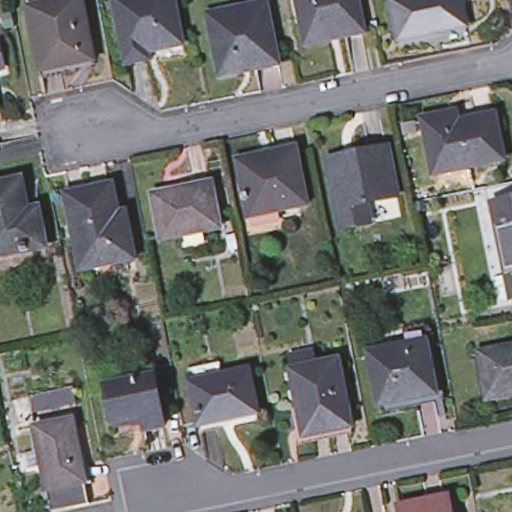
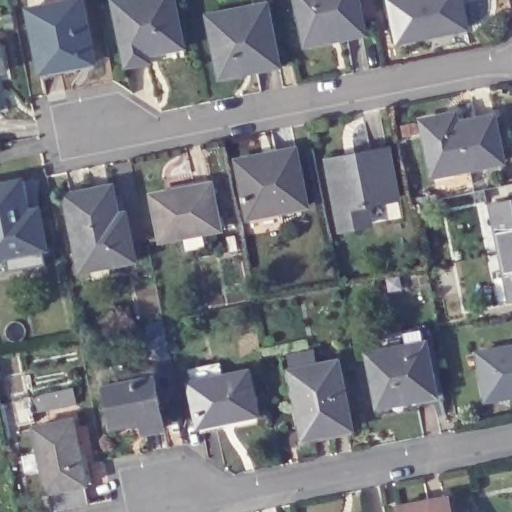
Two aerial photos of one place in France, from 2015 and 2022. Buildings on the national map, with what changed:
unchanged [(22,11),(39,8),(37,0),(75,0),(76,0),(88,63),(35,74),(22,11)]
unchanged [(142,49),(144,57),(121,61),(109,0),(172,0),(180,41),(142,49)]
unchanged [(212,73),(200,11),(256,0),(259,0),(271,61),(212,73)]
unchanged [(301,41),(293,0),(354,0),(360,30),(301,41)]
unchanged [(396,36),(389,0),(458,0),(462,24),(396,36)]
unchanged [(452,166),(451,159),(428,164),(419,116),(442,113),(443,120),(491,111),(499,158),(452,166)]
unchanged [(396,214),(337,225),(323,154),(382,143),(396,214)]
unchanged [(301,202),(242,213),(232,155),(291,145),(301,202)]
unchanged [(0,181),(11,179),(15,194),(25,191),(36,244),(0,251),(0,181)]
unchanged [(216,224),(157,236),(147,191),(207,179),(216,224)]
unchanged [(111,219),(117,218),(124,257),(79,265),(75,243),(66,244),(55,192),(104,182),(111,219)]
unchanged [(502,254),(492,205),(512,201),(512,251),(502,254)]
unchanged [(502,254),(512,251),(512,302),(502,254)]
unchanged [(432,392),(373,403),(362,351),(421,339),(432,392)]
unchanged [(482,397),(475,349),(512,343),(512,392),(482,397)]
unchanged [(345,424),(298,433),(285,367),(332,358),(345,424)]
unchanged [(252,410),(193,422),(185,379),(244,368),(252,410)]
unchanged [(159,426),(138,429),(136,418),(107,423),(99,378),(148,369),(159,426)]
unchanged [(6,431),(0,404),(29,399),(34,426),(6,431)]
unchanged [(61,512),(49,512),(45,494),(34,431),(72,424),(85,487),(88,507),(61,512)]
unchanged [(446,512),(395,512),(394,504),(443,496),(446,512)]

